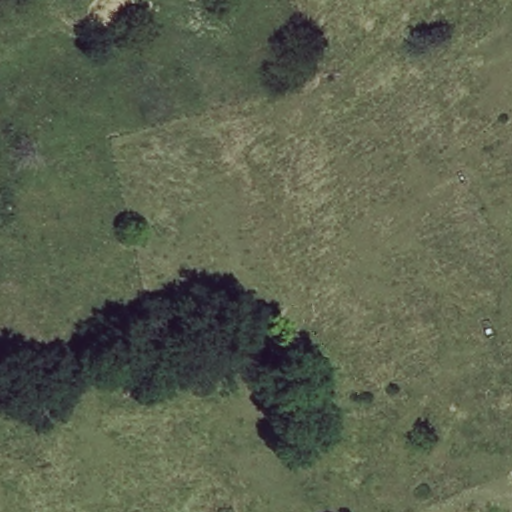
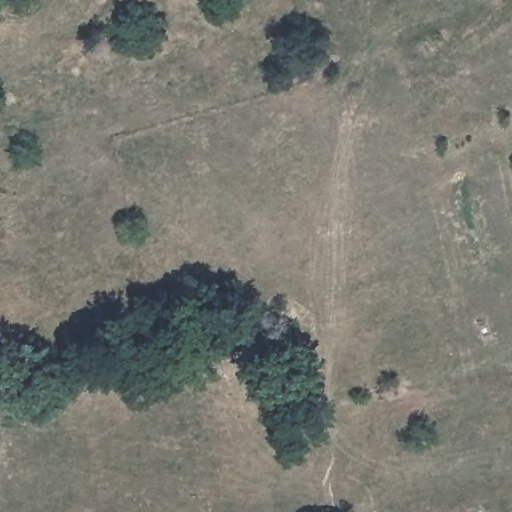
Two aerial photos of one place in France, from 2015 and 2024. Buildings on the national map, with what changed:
[]

